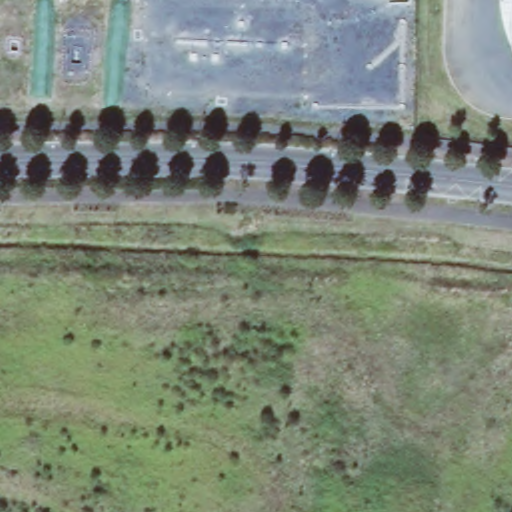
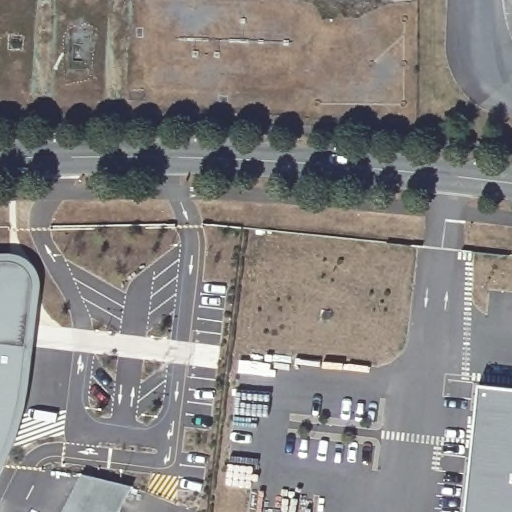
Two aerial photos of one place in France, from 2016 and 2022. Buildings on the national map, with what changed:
new [(19,267),(22,269),(27,275),(30,279),(32,287),(20,382),(15,414),(11,426),(4,446),(0,455),(0,264),(10,264),(19,267)]
new [(512,386),(512,512),(464,512),(478,382),(512,386)]
new [(80,474),(129,486),(120,504),(68,497),(80,474)]
new [(120,504),(116,512),(61,512),(68,497),(120,504)]

